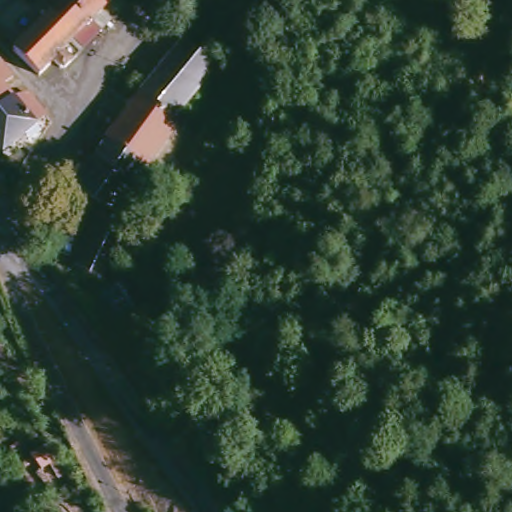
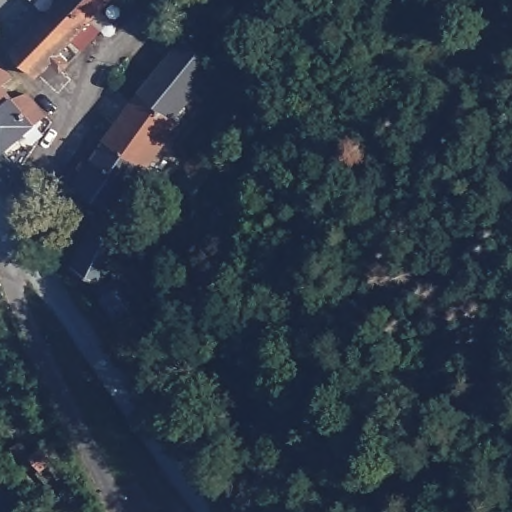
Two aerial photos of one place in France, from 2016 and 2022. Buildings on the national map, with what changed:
unchanged [(102,36),(86,53),(75,43),(68,51),(78,61),(66,74),(55,64),(41,79),(15,55),(69,0),(116,0),(91,25),(102,36)]
unchanged [(175,118),(142,96),(185,41),(217,66),(175,118)]
unchanged [(7,85),(17,95),(23,96),(28,91),(49,115),(7,151),(0,143),(0,62),(15,78),(7,85)]
unchanged [(81,182),(98,157),(110,141),(142,96),(175,118),(180,122),(146,168),(135,183),(116,208),(81,182)]
unchanged [(103,279),(71,263),(101,206),(135,223),(103,279)]
unchanged [(142,300),(120,315),(103,292),(125,278),(142,300)]
unchanged [(61,449),(46,463),(35,450),(50,436),(61,449)]
unchanged [(161,512),(152,512),(159,508),(161,512)]

